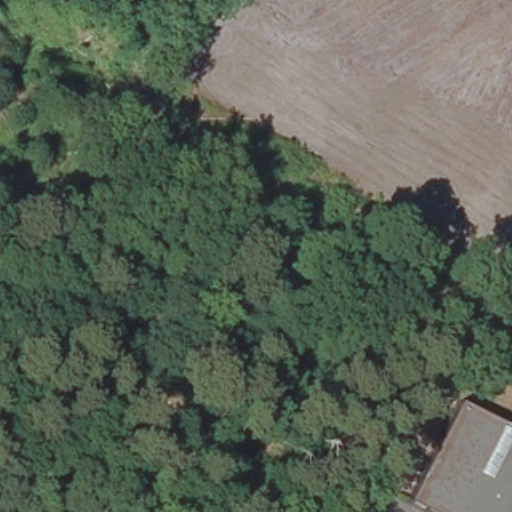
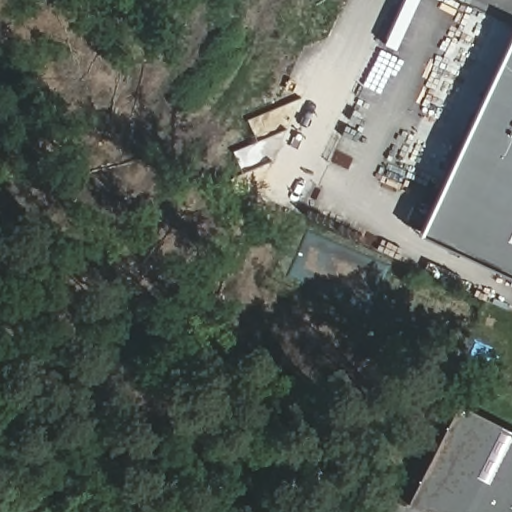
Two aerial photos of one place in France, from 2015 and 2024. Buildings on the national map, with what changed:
new [(418,236),(512,33),(512,278),(418,236)]
unchanged [(429,512),(407,502),(458,403),(512,430),(512,512),(429,512)]

